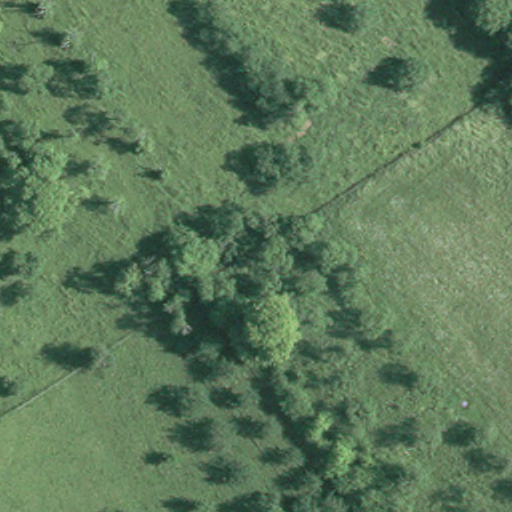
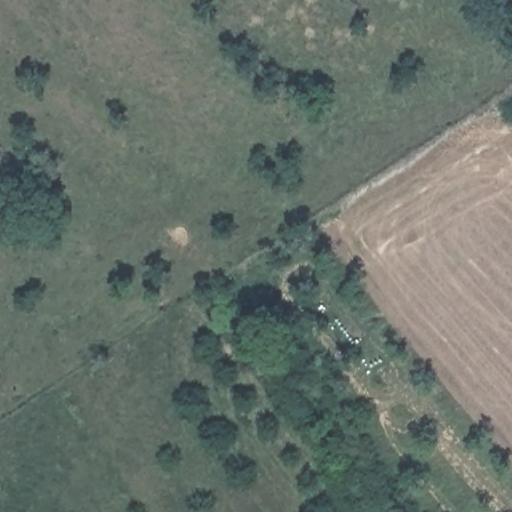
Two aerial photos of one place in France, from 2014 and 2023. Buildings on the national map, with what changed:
[]

